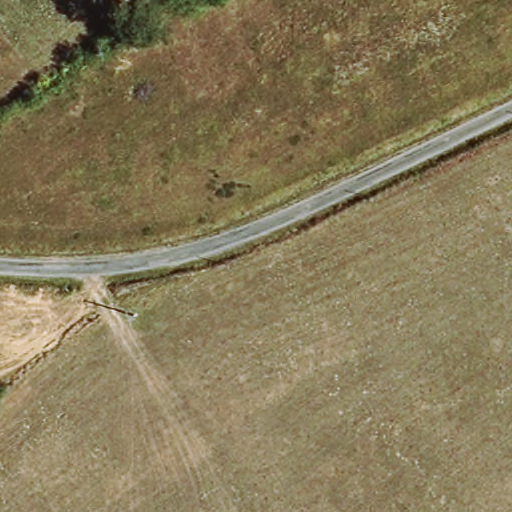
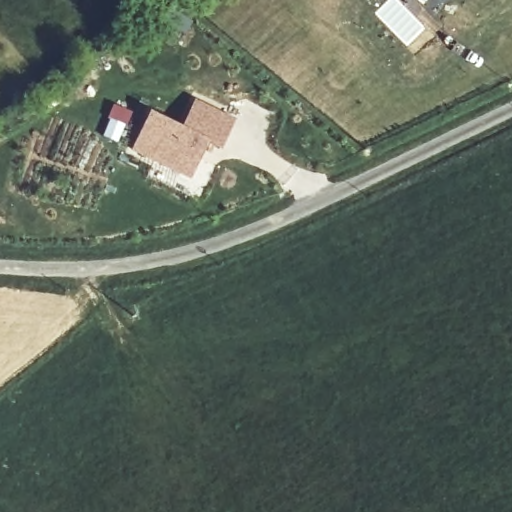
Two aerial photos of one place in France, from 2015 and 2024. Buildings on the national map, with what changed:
new [(221,152),(208,145),(189,182),(129,152),(148,113),(181,129),(194,102),(236,121),(221,152)]

